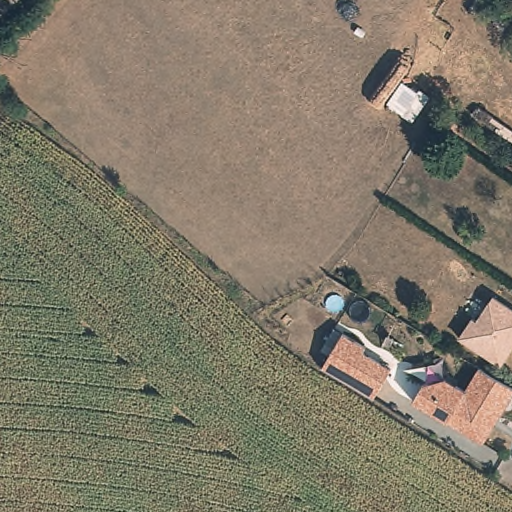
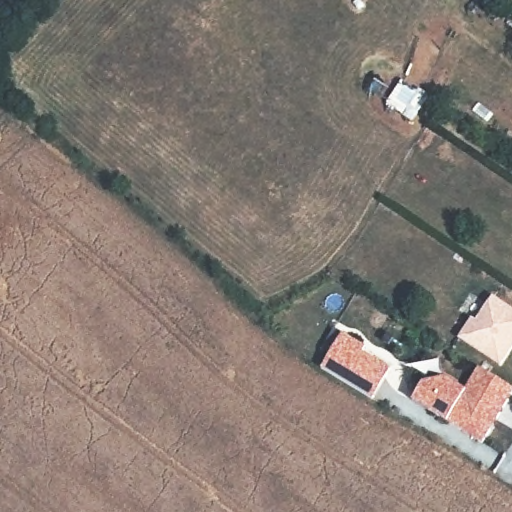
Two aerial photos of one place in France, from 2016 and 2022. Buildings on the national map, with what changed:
unchanged [(489,296),(512,311),(512,343),(497,365),(457,339),(470,320),(473,322),(489,296)]
unchanged [(344,330),(367,345),(363,350),(391,369),(371,398),(371,397),(322,365),(344,330)]
unchanged [(422,382),(443,377),(463,390),(478,367),(482,370),(512,388),(512,392),(481,442),(412,400),(422,382)]

